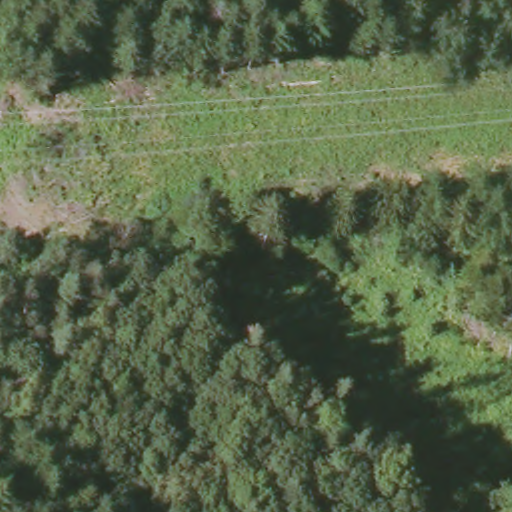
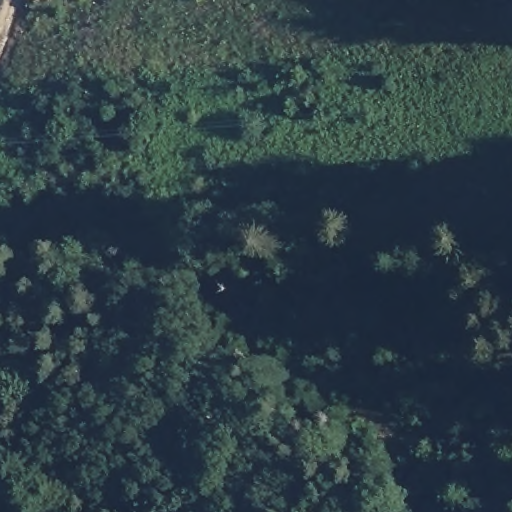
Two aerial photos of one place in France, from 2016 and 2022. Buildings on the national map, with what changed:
unchanged [(38,1),(37,0),(38,0),(38,1)]

